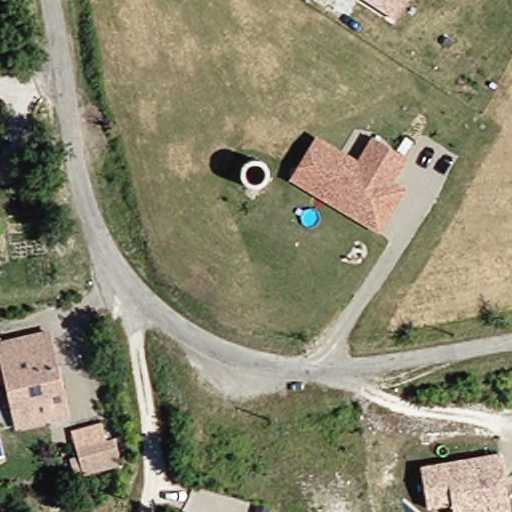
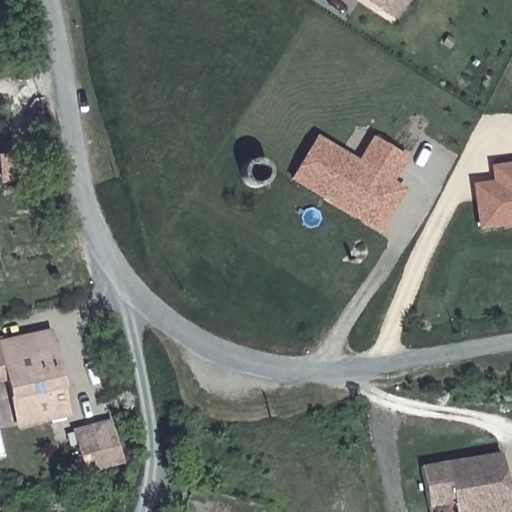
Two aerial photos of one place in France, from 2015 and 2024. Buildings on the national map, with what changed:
unchanged [(353,0),(396,0),(384,20),(353,0)]
unchanged [(285,173),(311,133),(352,160),(367,135),(398,156),(382,180),(380,179),(362,205),(324,181),(316,194),(285,173)]
new [(476,179),(495,176),(494,161),(512,159),(512,225),(481,229),(476,179)]
unchanged [(239,166),(244,162),(251,162),(258,166),(260,172),(260,178),(257,183),(250,186),(245,185),(240,182),(237,173),(239,166)]
unchanged [(324,181),(362,205),(380,179),(382,180),(395,189),(369,227),(316,194),(324,181)]
unchanged [(8,421),(4,398),(1,384),(0,378),(0,342),(44,335),(51,368),(46,369),(49,390),(54,389),(60,418),(41,421),(9,427),(8,421)]
unchanged [(116,442),(121,466),(104,470),(83,476),(76,455),(104,445),(116,442)]
unchanged [(454,505),(430,508),(425,467),(504,457),(511,512),(455,512),(454,505)]

